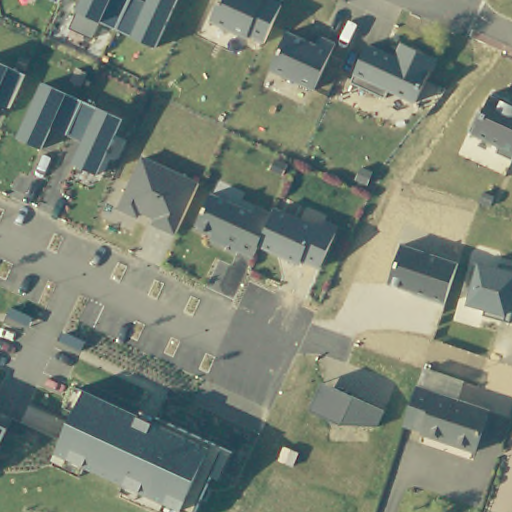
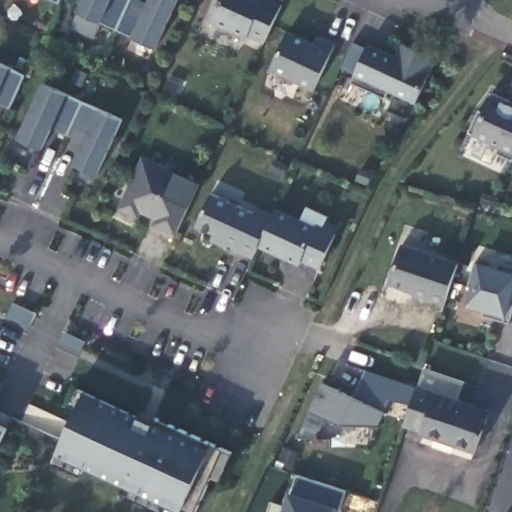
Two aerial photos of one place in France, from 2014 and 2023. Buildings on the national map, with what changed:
unchanged [(60,0),(59,2),(53,0),(60,0)]
unchanged [(78,12),(83,0),(140,0),(147,3),(148,0),(177,0),(156,48),(102,24),(92,40),(69,30),(78,12)]
unchanged [(247,35),(247,38),(210,21),(220,1),(219,0),(271,0),(282,5),(264,42),(247,35)]
unchanged [(287,32),(316,45),(320,36),(335,44),(314,90),(270,70),(287,32)]
unchanged [(367,45),(395,57),(401,44),(436,60),(416,102),(389,90),(385,99),(350,83),(367,45)]
unchanged [(0,106),(0,63),(12,68),(25,73),(9,110),(0,106)]
unchanged [(43,82),(124,120),(98,174),(74,164),(82,142),(52,128),(42,149),(17,138),(43,82)]
unchanged [(500,148),(472,135),(492,95),(512,104),(512,161),(497,154),(500,148)]
unchanged [(143,158),(199,184),(176,234),(158,226),(161,220),(141,211),(138,216),(120,208),(143,158)]
unchanged [(212,193),(255,213),(257,207),(273,215),(259,245),(254,257),(239,250),(238,251),(222,244),(224,239),(197,226),(212,193)]
unchanged [(276,209),(316,227),(317,225),(336,234),(320,267),(302,259),(300,263),(259,245),(273,215),(276,209)]
unchanged [(388,285),(402,244),(461,264),(446,304),(388,285)]
unchanged [(488,311),(466,306),(478,262),(512,271),(512,323),(485,317),(488,311)]
unchanged [(29,327),(24,325),(7,316),(11,307),(27,315),(33,317),(29,327)]
unchanged [(81,351),(64,343),(59,340),(63,331),(69,334),(86,342),(81,351)]
unchanged [(341,425),(312,411),(325,383),(356,398),(387,412),(379,427),(341,425)]
unchanged [(490,410),(475,451),(420,435),(421,428),(405,422),(415,391),(417,386),(490,410)]
unchanged [(163,510),(167,502),(153,496),(150,504),(122,491),(126,483),(86,465),(82,473),(54,460),(57,452),(72,419),(65,415),(77,387),(86,391),(154,422),(156,416),(225,448),(233,451),(220,480),(212,476),(196,512),(166,512),(163,510)]
unchanged [(7,428),(0,442),(0,425),(7,428)]
new [(340,506),(338,512),(267,512),(272,497),(285,501),(289,490),(294,492),(298,474),(347,490),(340,506)]

